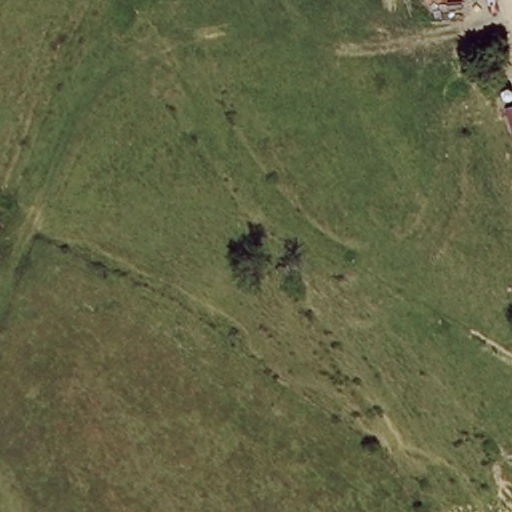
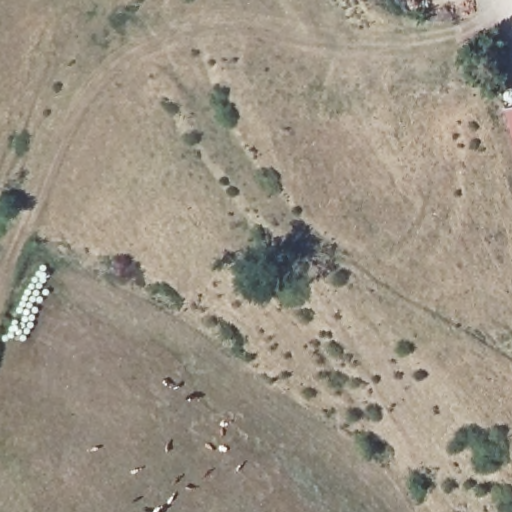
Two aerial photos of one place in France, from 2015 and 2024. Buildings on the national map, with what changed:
unchanged [(511,106),(512,105),(512,111),(511,106)]

